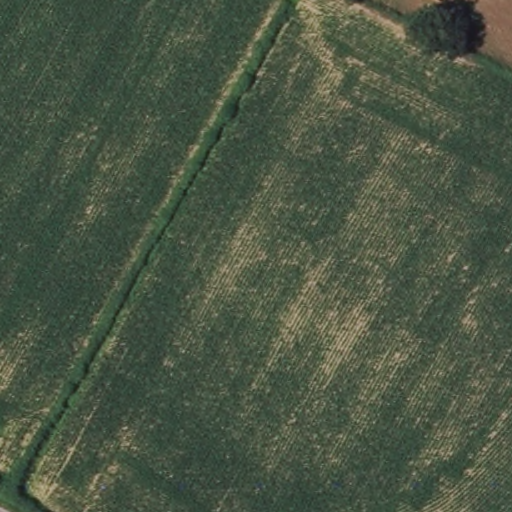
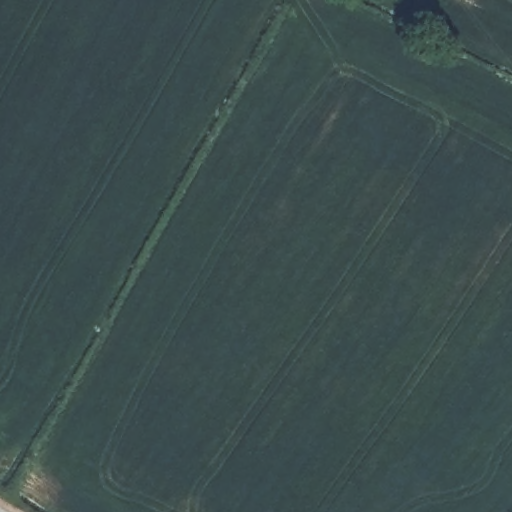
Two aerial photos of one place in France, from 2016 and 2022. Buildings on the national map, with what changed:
[]

